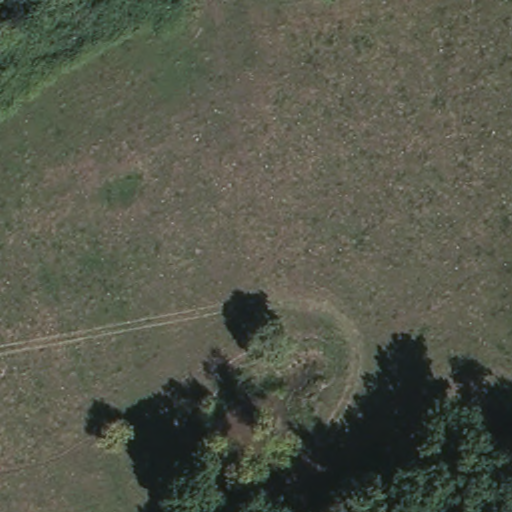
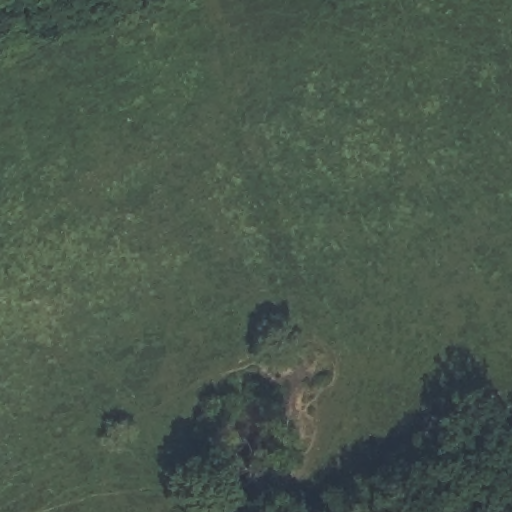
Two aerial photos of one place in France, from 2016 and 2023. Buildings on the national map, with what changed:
[]

